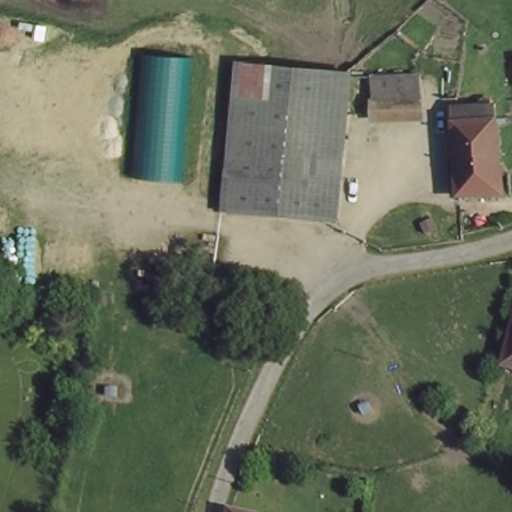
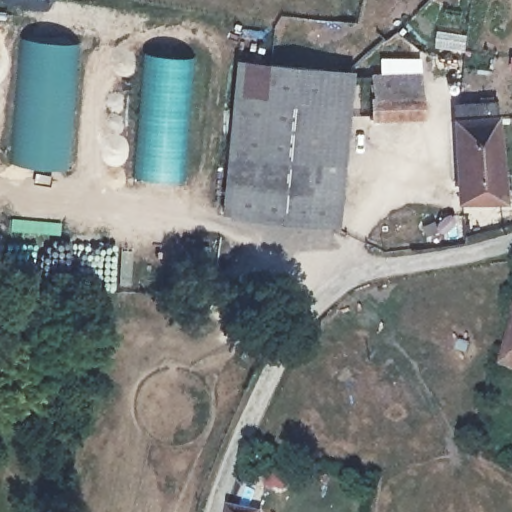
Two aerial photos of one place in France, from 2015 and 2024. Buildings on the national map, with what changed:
new [(16,81),(20,36),(79,41),(68,168),(11,162),(16,81)]
unchanged [(185,179),(135,175),(148,52),(196,56),(185,179)]
unchanged [(236,93),(245,94),(269,96),(273,66),(353,71),(350,113),(341,225),(225,216),(236,93)]
unchanged [(374,78),(430,82),(429,104),(373,101),(374,78)]
unchanged [(429,107),(428,121),(368,119),(369,111),(369,101),(373,101),(429,104),(429,107)]
unchanged [(495,112),(500,199),(459,203),(457,115),(495,112)]
new [(11,219),(61,223),(60,237),(10,235),(11,219)]
unchanged [(502,370),(512,345),(512,373),(502,370)]

